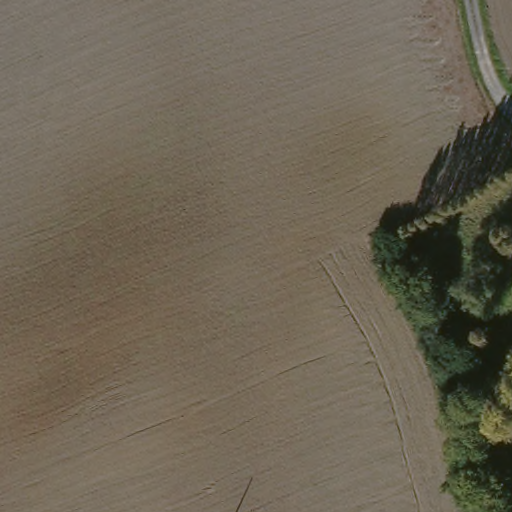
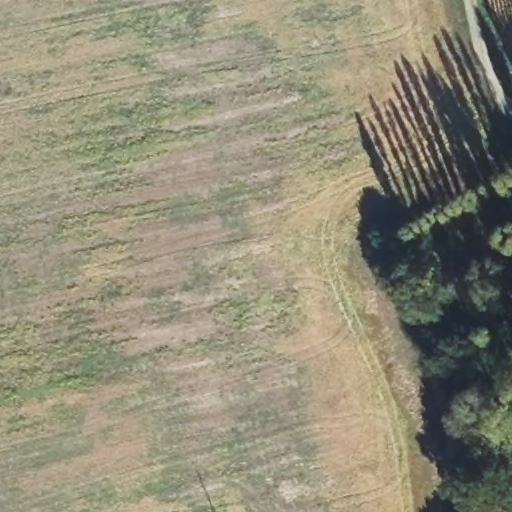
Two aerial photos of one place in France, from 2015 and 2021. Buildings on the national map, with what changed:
[]

